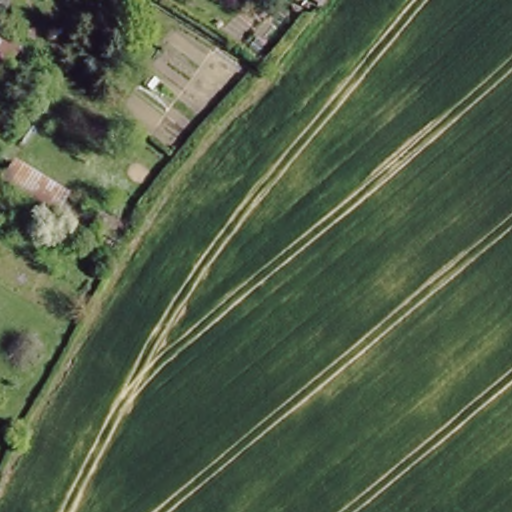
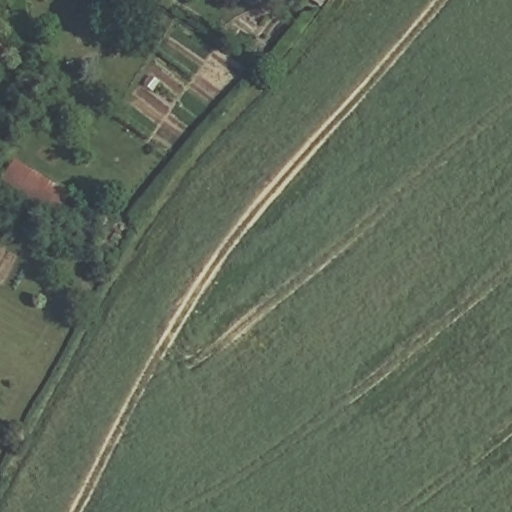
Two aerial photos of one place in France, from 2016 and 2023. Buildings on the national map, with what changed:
unchanged [(74,193),(60,216),(1,183),(17,157),(74,193)]

